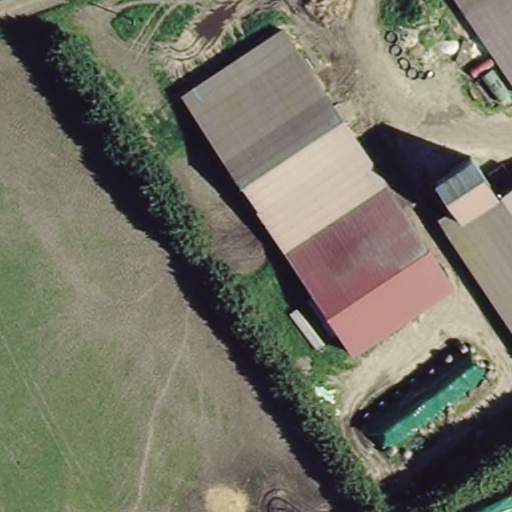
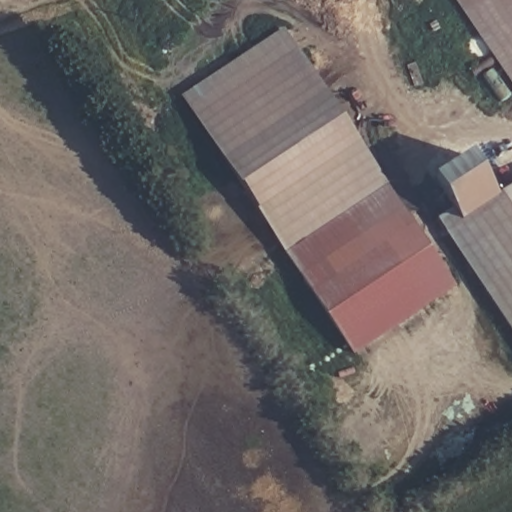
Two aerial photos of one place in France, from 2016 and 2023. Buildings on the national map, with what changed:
unchanged [(451,0),(512,0),(512,98),(451,0)]
unchanged [(288,34),(407,238),(316,287),(306,293),(188,93),(288,34)]
unchanged [(512,183),(512,325),(448,226),(512,183)]
unchanged [(316,287),(407,238),(444,297),(352,361),(306,293),(316,287)]

